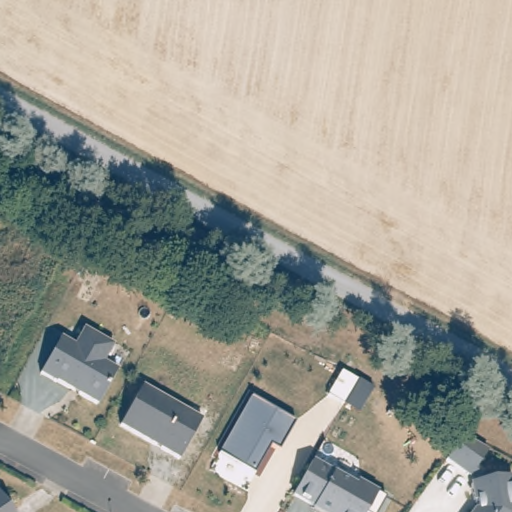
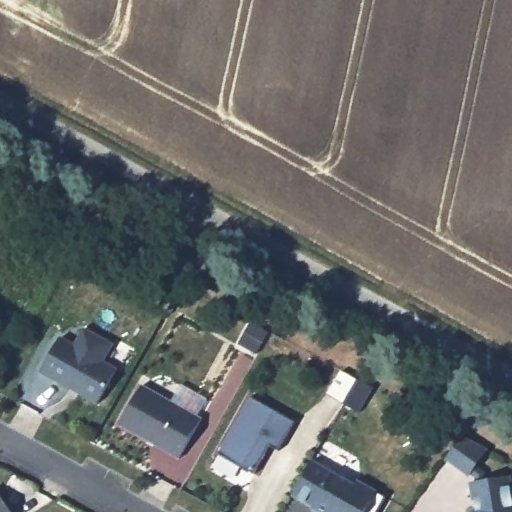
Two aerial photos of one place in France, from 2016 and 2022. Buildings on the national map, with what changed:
unchanged [(56,384),(56,385),(40,376),(60,341),(74,350),(84,332),(113,346),(103,364),(116,371),(96,406),(79,396),(70,391),(56,384)]
unchanged [(201,420),(179,460),(120,426),(141,388),(201,420)]
unchanged [(295,425),(278,453),(270,447),(253,475),(218,455),(251,397),(295,425)]
unchanged [(471,481),(445,459),(461,436),(488,456),(484,462),(496,477),(511,475),(512,482),(512,512),(475,512),(476,510),(471,481)]
unchanged [(357,480),(378,493),(366,512),(314,512),(290,497),(312,461),(354,485),(357,480)]
unchanged [(0,512),(0,496),(11,512),(0,512)]

